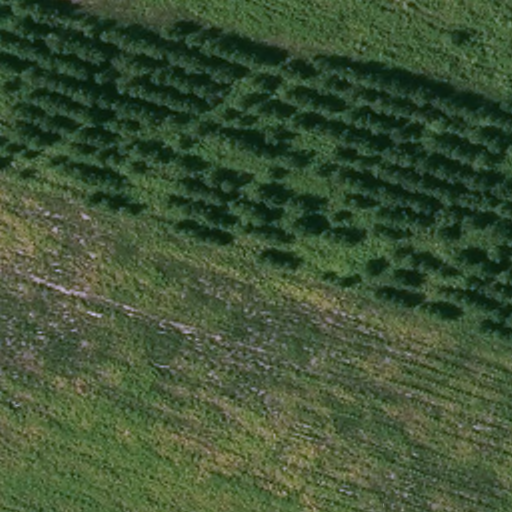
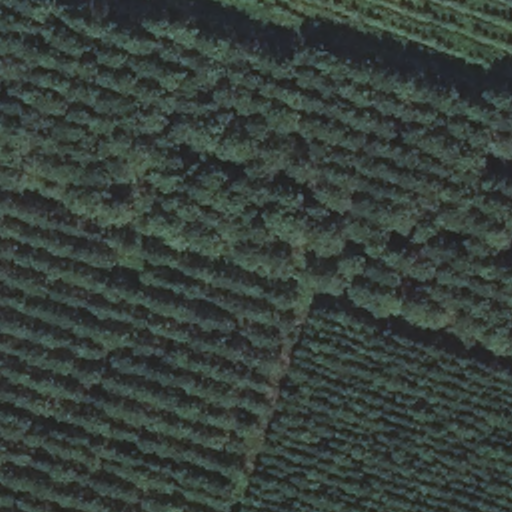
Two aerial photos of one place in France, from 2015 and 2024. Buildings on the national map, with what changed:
[]

